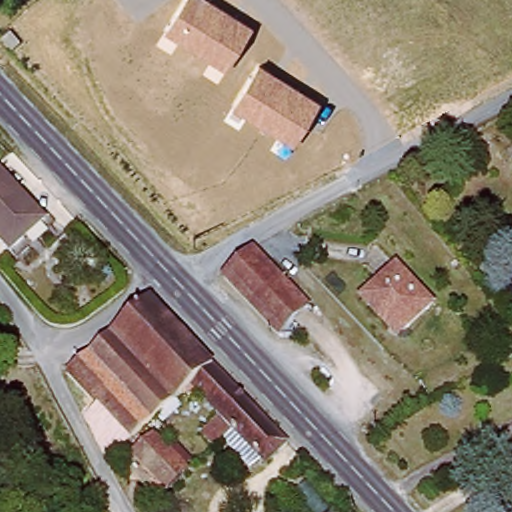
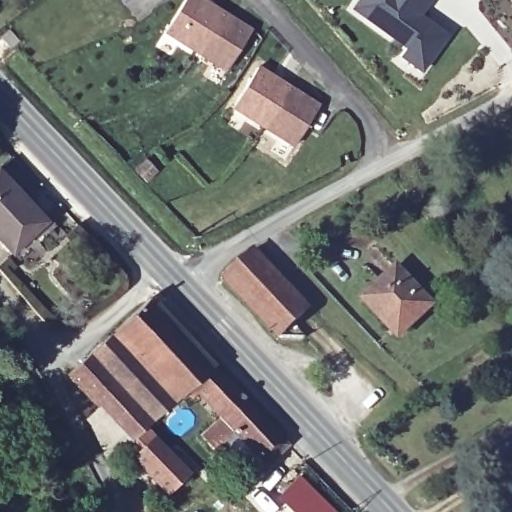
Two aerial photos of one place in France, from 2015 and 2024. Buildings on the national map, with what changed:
unchanged [(226,71),(164,34),(184,0),(207,0),(252,29),(226,71)]
new [(405,48),(349,10),(356,0),(433,0),(423,15),(451,36),(423,73),(399,58),(405,48)]
unchanged [(0,35),(0,29),(3,26),(13,36),(6,43),(0,35)]
unchanged [(319,104),(292,146),(233,110),(259,67),(319,104)]
unchanged [(11,254),(0,242),(0,173),(45,222),(11,254)]
unchanged [(278,339),(222,279),(250,252),(306,312),(293,325),(306,340),(278,339)]
unchanged [(429,305),(397,335),(364,300),(396,270),(429,305)]
unchanged [(108,341),(148,305),(211,372),(189,392),(172,408),(108,341)]
unchanged [(374,318),(376,322),(372,324),(369,320),(374,318)]
unchanged [(96,352),(108,341),(172,408),(155,424),(149,429),(86,362),(96,352)]
unchanged [(122,454),(108,465),(83,422),(95,413),(66,381),(86,362),(149,429),(122,454)]
unchanged [(286,450),(264,470),(233,436),(212,456),(198,441),(218,423),(189,392),(211,372),(243,405),(286,450)]
unchanged [(149,429),(155,424),(198,470),(165,500),(122,454),(149,429)]

